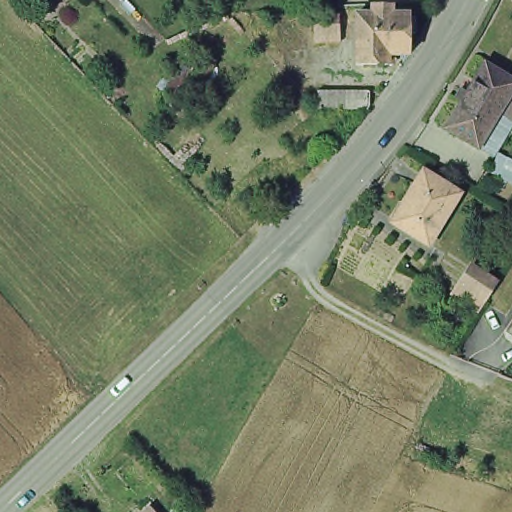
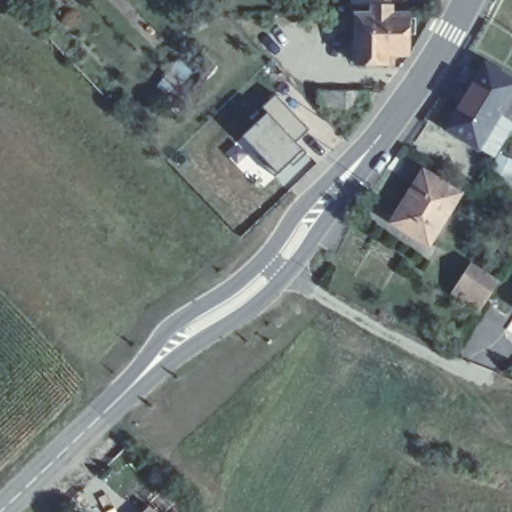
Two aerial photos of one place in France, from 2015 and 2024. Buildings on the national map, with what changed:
unchanged [(361,61),(358,20),(376,19),(376,7),(394,5),(396,17),(413,17),(413,21),(419,21),(419,35),(414,36),(415,59),(392,60),(393,72),(361,74),(361,61)]
unchanged [(328,48),(327,31),(326,22),(348,20),(349,29),(350,47),(328,48)]
unchanged [(484,57),(512,74),(512,116),(511,116),(498,107),(476,141),(444,121),(484,57)]
unchanged [(186,111),(178,120),(164,110),(191,72),(200,60),(209,66),(199,80),(181,105),(186,111)]
new [(261,107),(276,94),(309,129),(296,142),(311,159),(284,186),(275,176),(277,174),(239,137),(265,111),(261,107)]
unchanged [(319,95),(343,95),(366,95),(366,114),(364,115),(343,115),(319,116),(319,95)]
unchanged [(461,192),(430,242),(398,222),(408,205),(405,203),(425,170),(461,192)]
unchanged [(457,293),(463,285),(462,284),(474,266),(499,282),(487,301),(485,300),(479,309),(457,293)]
unchanged [(149,505),(156,512),(141,512),(149,505)]

